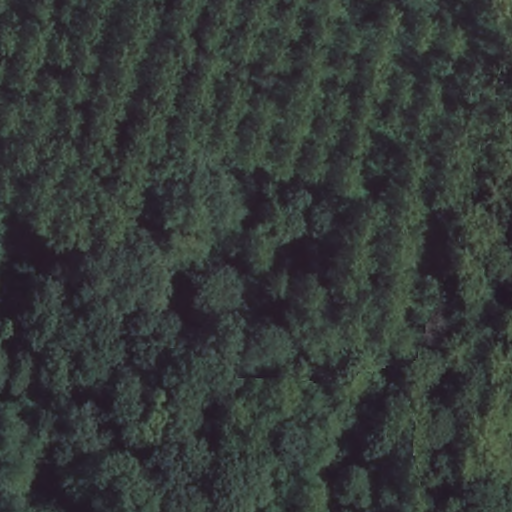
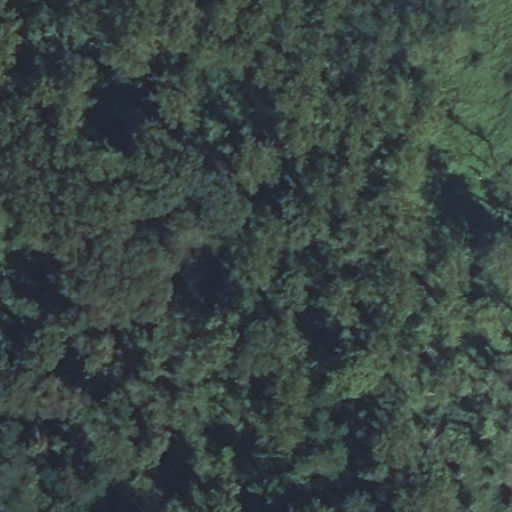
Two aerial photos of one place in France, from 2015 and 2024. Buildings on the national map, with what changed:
[]

